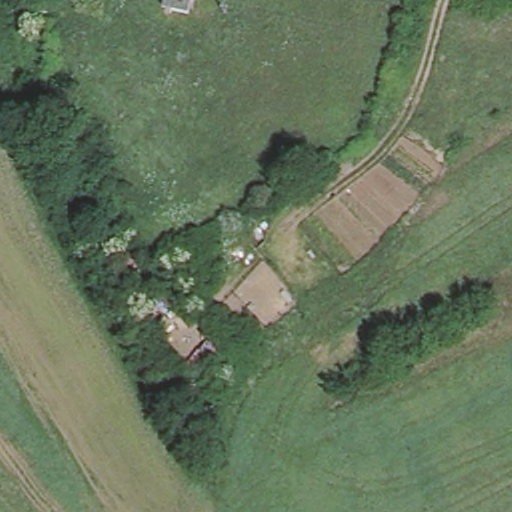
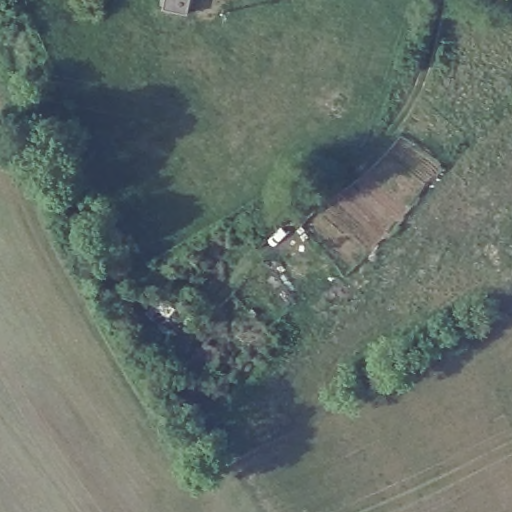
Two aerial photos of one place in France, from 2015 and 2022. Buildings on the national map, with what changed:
unchanged [(199,16),(168,14),(167,0),(200,0),(199,16)]

